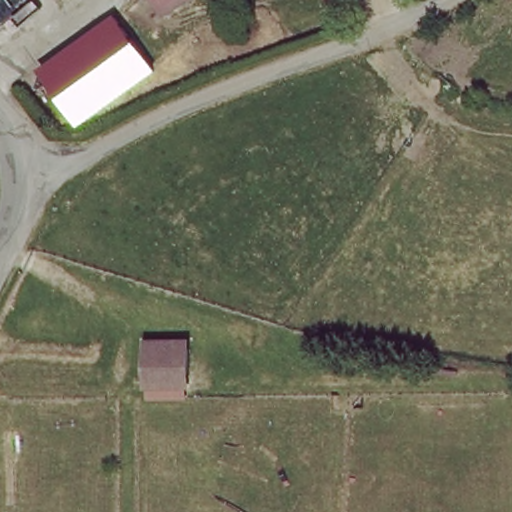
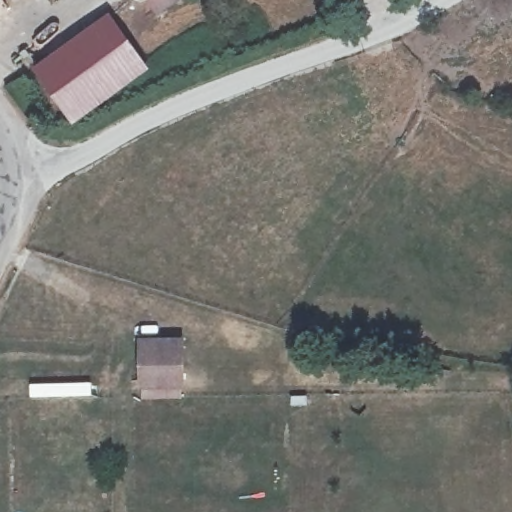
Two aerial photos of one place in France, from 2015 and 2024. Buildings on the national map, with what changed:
unchanged [(143,0),(179,0),(155,17),(143,0)]
unchanged [(111,19),(152,73),(76,128),(35,72),(111,19)]
unchanged [(168,386),(142,387),(141,354),(181,354),(182,378),(182,386),(168,386)]

